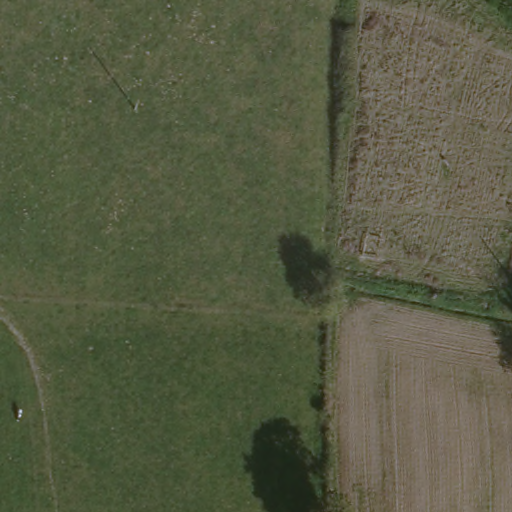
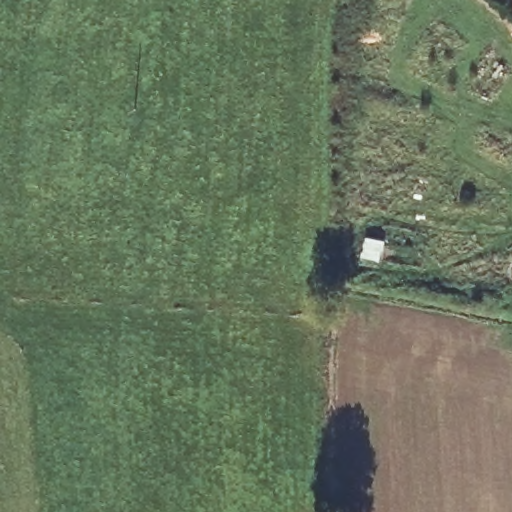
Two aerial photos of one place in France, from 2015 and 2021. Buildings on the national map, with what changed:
[]

